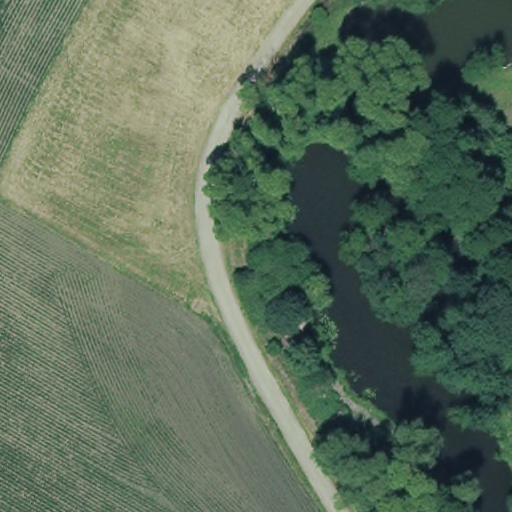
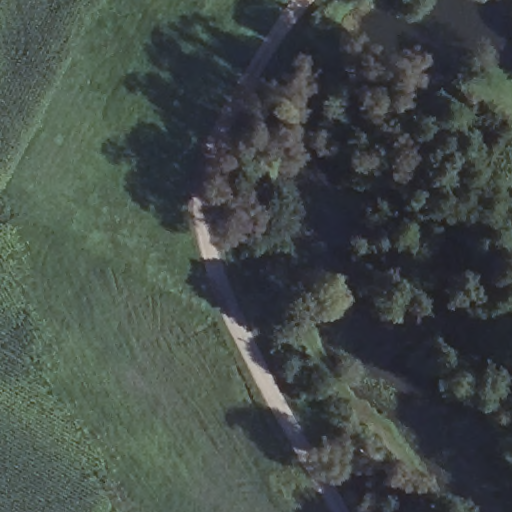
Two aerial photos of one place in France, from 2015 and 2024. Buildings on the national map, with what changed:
[]

